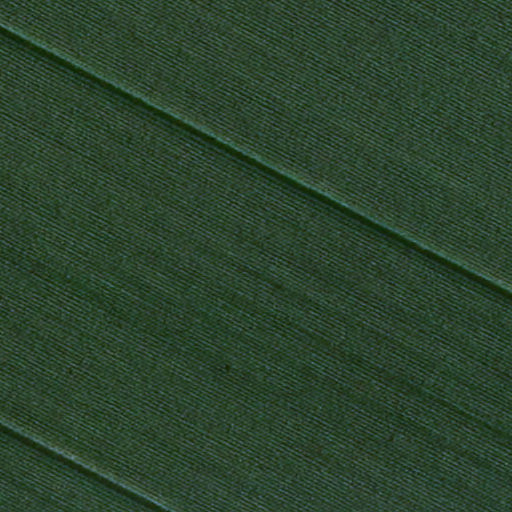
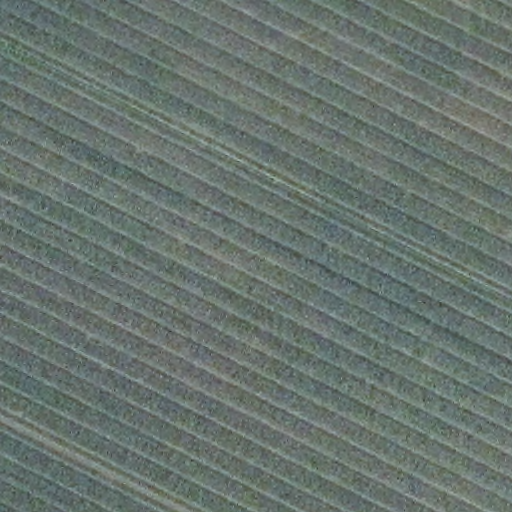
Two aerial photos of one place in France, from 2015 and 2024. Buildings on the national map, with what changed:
[]

